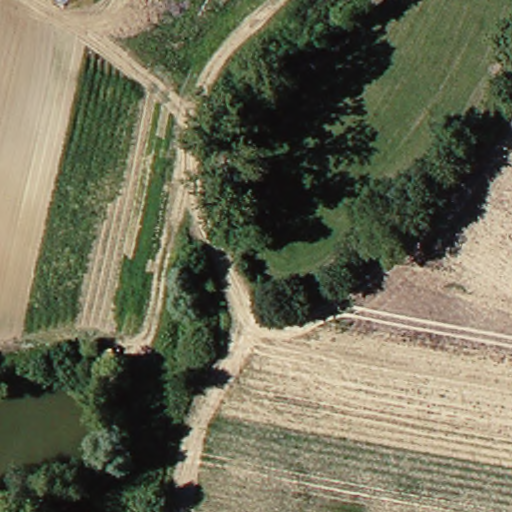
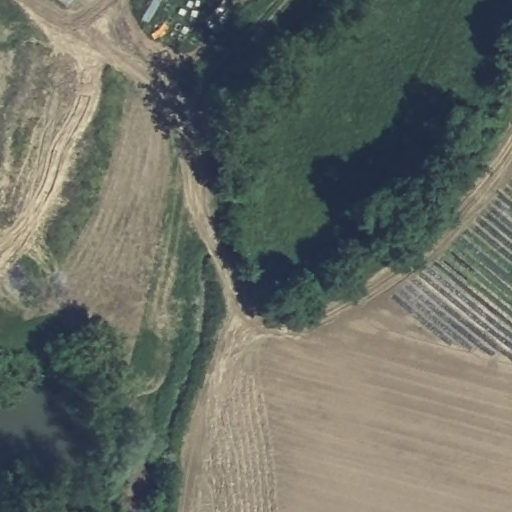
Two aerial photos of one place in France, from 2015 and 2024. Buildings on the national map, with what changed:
unchanged [(68,0),(77,0),(73,5),(68,0)]

